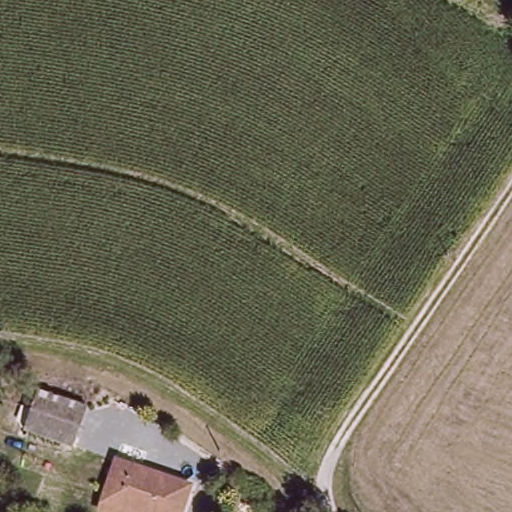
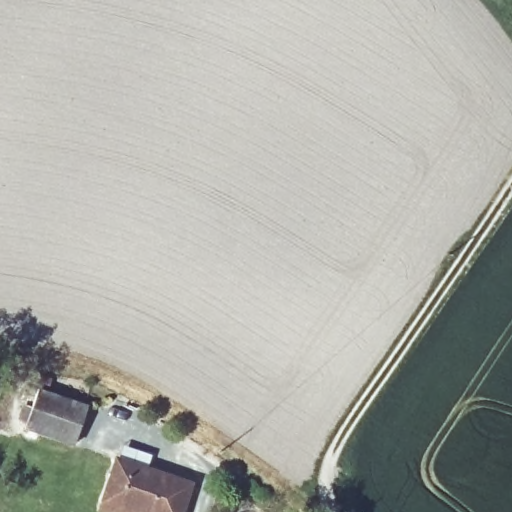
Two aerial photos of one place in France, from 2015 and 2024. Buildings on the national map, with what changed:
unchanged [(34,386),(86,407),(70,443),(19,422),(34,386)]
unchanged [(114,461),(189,488),(180,512),(130,512),(99,501),(114,461)]

